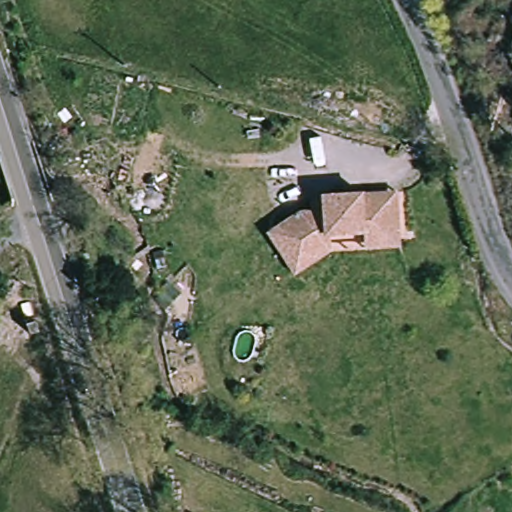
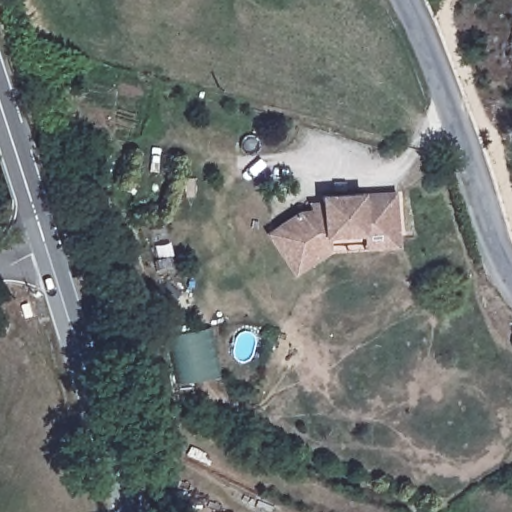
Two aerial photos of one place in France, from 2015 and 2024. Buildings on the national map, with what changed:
unchanged [(359,235),(325,237),(320,237),(294,255),(275,226),(294,212),(306,212),(306,204),(318,204),(318,198),(358,195),(391,194),(392,202),(394,233),(394,248),(360,250),(359,235)]
unchanged [(325,237),(325,252),(290,276),(262,234),(275,226),(294,255),(320,237),(325,237)]
unchanged [(38,336),(29,337),(28,329),(37,327),(38,336)]
new [(183,384),(170,338),(211,328),(220,375),(183,384)]

